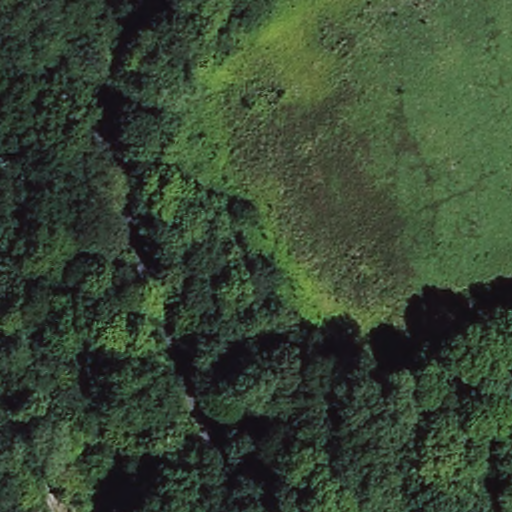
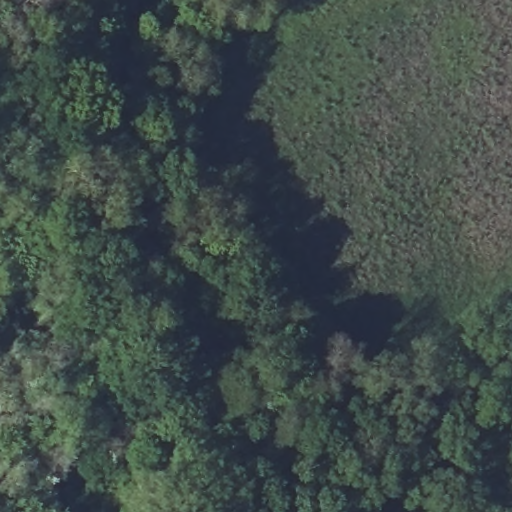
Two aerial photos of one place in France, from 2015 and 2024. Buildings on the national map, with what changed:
unchanged [(335,432),(347,445),(355,439),(357,438),(363,449),(367,457),(376,473),(377,475),(375,477),(380,479),(380,482),(343,511),(312,481),(300,468),(335,432)]
unchanged [(392,488),(380,479),(375,477),(377,475),(380,471),(410,434),(432,453),(400,493),(392,488)]

